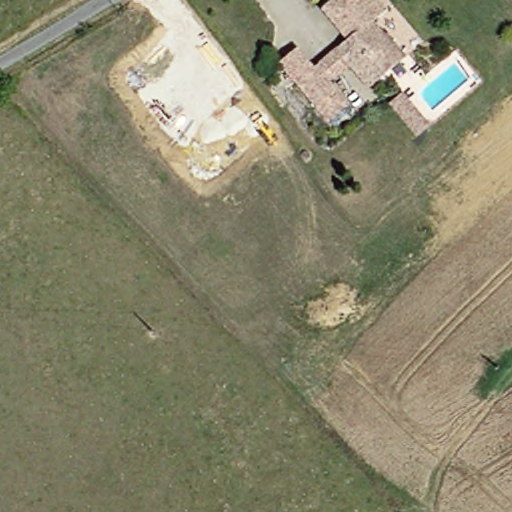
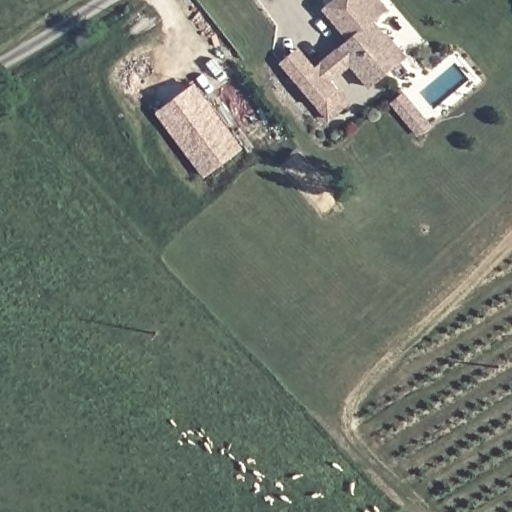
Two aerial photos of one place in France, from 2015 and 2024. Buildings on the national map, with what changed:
unchanged [(373,89),(353,68),(355,64),(345,49),(352,43),(327,13),(344,0),(381,0),(391,12),(378,24),(391,39),(410,63),(400,70),(373,89)]
unchanged [(318,68),(345,50),(355,64),(353,68),(333,83),(342,94),(321,109),(284,64),(303,50),(318,68)]
new [(195,84),(244,148),(202,177),(155,114),(195,84)]
new [(415,136),(408,127),(391,104),(403,95),(420,119),(427,127),(415,136)]

